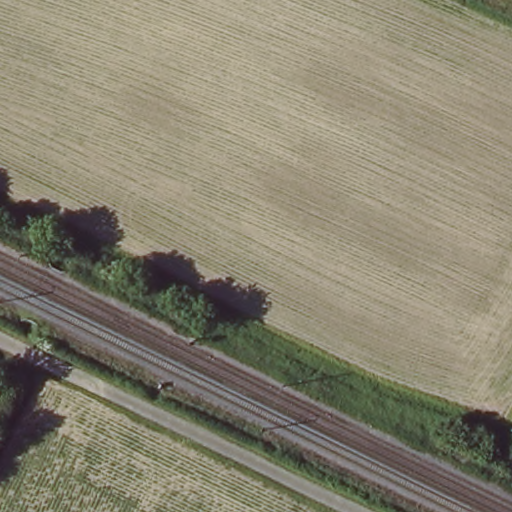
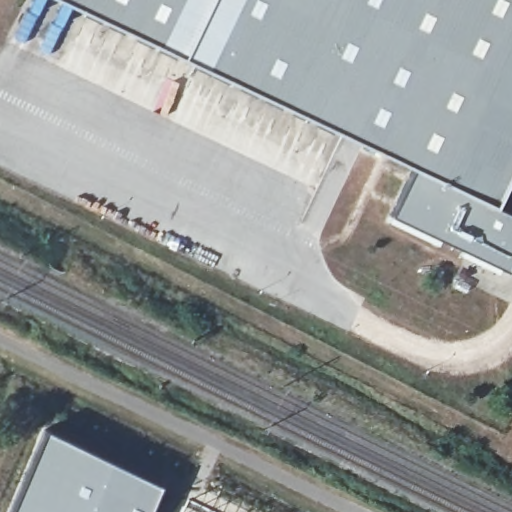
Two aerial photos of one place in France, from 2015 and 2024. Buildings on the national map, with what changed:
new [(493,205),(512,215),(512,262),(507,272),(390,217),(413,168),(61,0),(512,0),(512,165),(493,205)]
new [(44,430),(161,486),(149,512),(6,512),(26,467),(44,430)]

